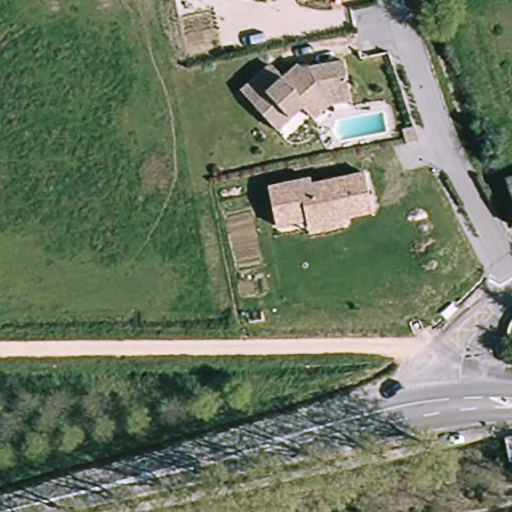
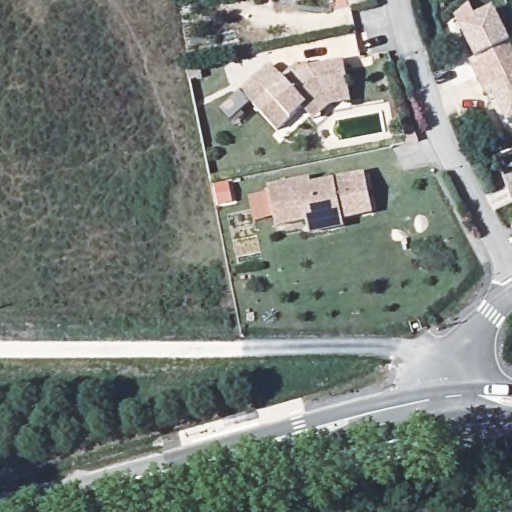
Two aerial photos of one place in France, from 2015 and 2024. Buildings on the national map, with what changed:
unchanged [(316,0),(299,3),(299,0),(316,0)]
new [(469,4),(477,19),(494,9),(512,44),(512,124),(510,125),(494,93),(489,95),(472,62),(477,59),(461,26),(455,16),(469,4)]
unchanged [(331,108),(316,124),(301,110),(273,132),(240,89),(273,64),(284,79),(301,67),(304,71),(346,65),(351,94),(352,104),(331,108)]
unchanged [(419,146),(408,149),(405,134),(415,133),(419,146)]
unchanged [(306,233),(305,225),(304,219),(274,224),(268,187),(299,182),(309,179),(311,185),(364,177),(368,198),(371,215),(339,220),(341,227),(306,233)]
unchanged [(504,179),(512,177),(512,209),(504,179)]

